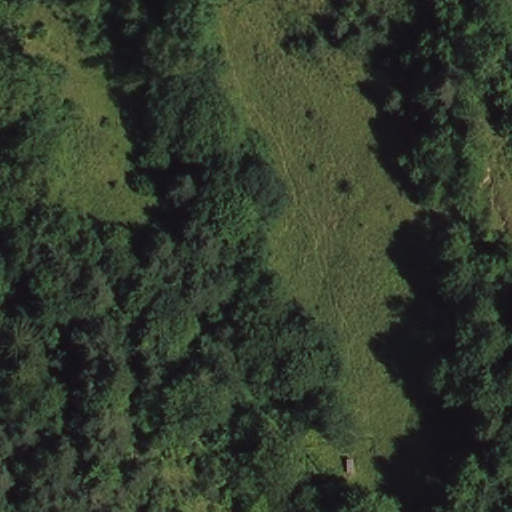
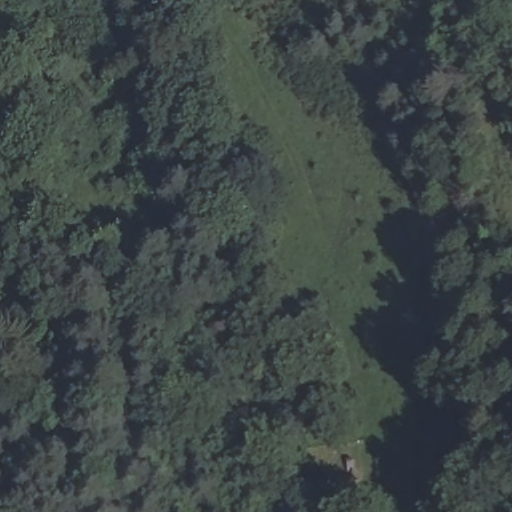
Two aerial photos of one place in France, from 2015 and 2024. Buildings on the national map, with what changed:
[]

